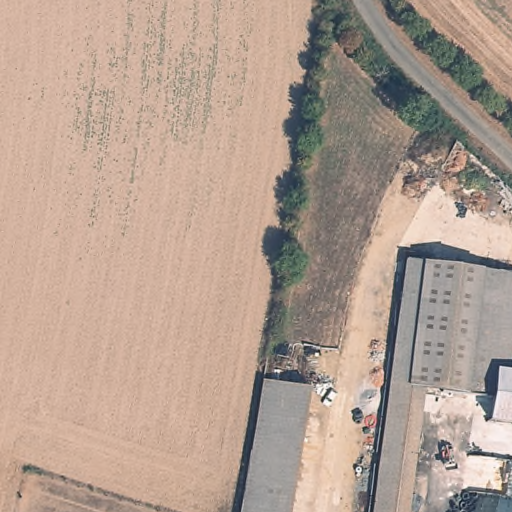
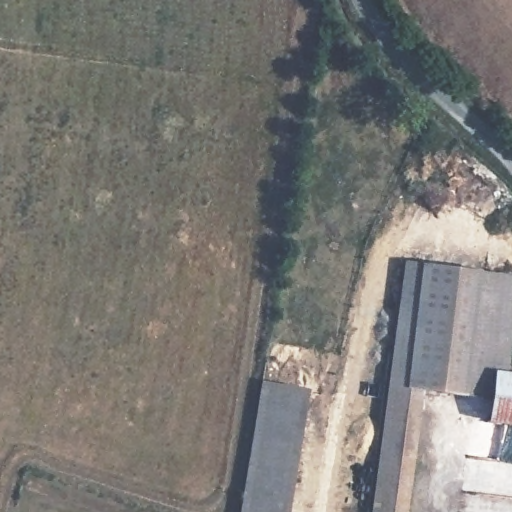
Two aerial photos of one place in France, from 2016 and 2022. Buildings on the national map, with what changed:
unchanged [(512,279),(512,343),(509,377),(505,406),(422,394),(406,512),(373,512),(406,265),(512,279)]
unchanged [(512,378),(512,429),(502,427),(505,406),(509,377),(512,378)]
unchanged [(290,512),(241,512),(262,385),(310,393),(290,512)]

